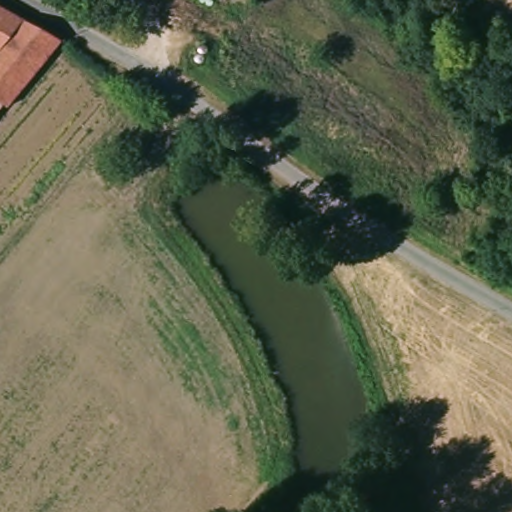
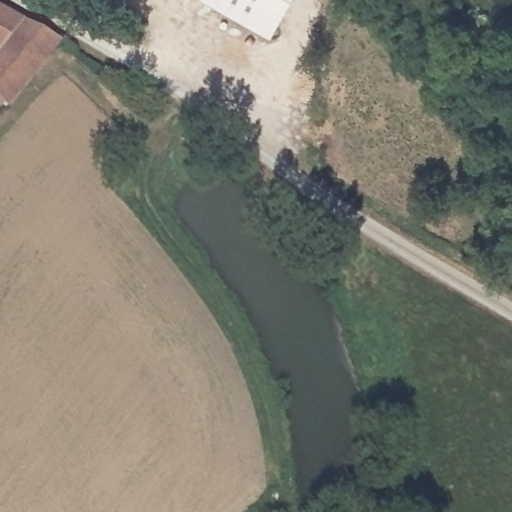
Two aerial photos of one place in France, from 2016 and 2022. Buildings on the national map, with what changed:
new [(212,0),(296,0),(276,36),(212,0)]
unchanged [(2,44),(0,46),(0,8),(2,9),(22,20),(24,21),(8,37),(2,44)]
unchanged [(59,41),(58,43),(39,65),(17,87),(2,104),(2,105),(1,105),(0,106),(0,46),(2,44),(8,37),(24,21),(29,24),(32,25),(58,40),(60,40),(60,41),(59,41)]

